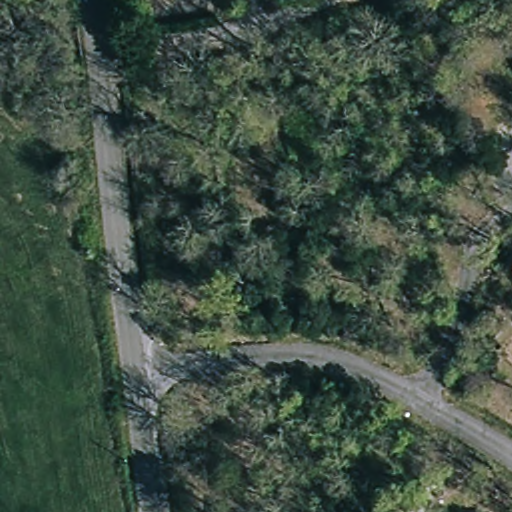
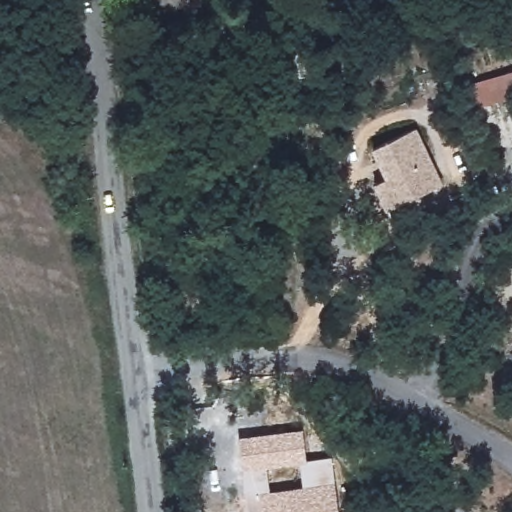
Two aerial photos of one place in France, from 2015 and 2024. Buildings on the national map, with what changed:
new [(478,107),(472,82),(512,71),(512,98),(478,107)]
new [(386,207),(388,206),(378,184),(388,180),(373,147),(415,127),(442,185),(387,211),(386,207)]
new [(247,512),(239,437),(302,430),(307,462),(332,458),(338,512),(262,512),(262,510),(247,512)]

